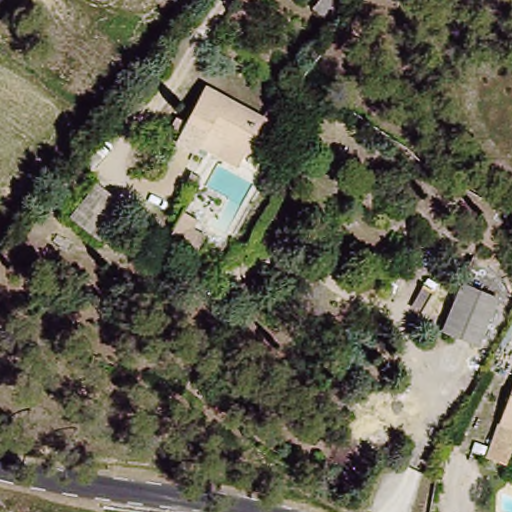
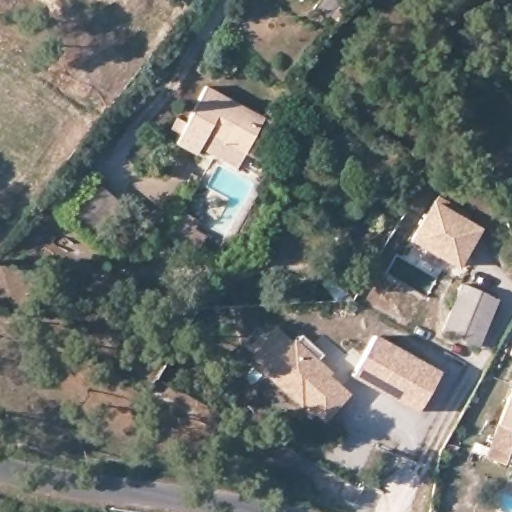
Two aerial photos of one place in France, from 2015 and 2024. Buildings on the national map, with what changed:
unchanged [(326,0),(346,0),(333,20),(320,10),(326,0)]
unchanged [(207,87),(264,122),(243,155),(208,135),(192,158),(170,145),(207,87)]
new [(125,207),(100,240),(70,218),(96,184),(125,207)]
new [(432,196),(477,222),(455,258),(410,231),(432,196)]
unchanged [(197,224),(209,231),(201,245),(177,231),(190,209),(202,216),(197,224)]
unchanged [(458,288),(491,302),(475,347),(440,332),(458,288)]
new [(375,331),(441,370),(417,408),(352,370),(375,331)]
new [(278,333),(293,348),(297,345),(330,376),(327,378),(348,397),(325,421),(305,402),(302,405),(269,375),(272,372),(256,357),(278,333)]
unchanged [(494,460),(512,392),(512,466),(494,460)]

